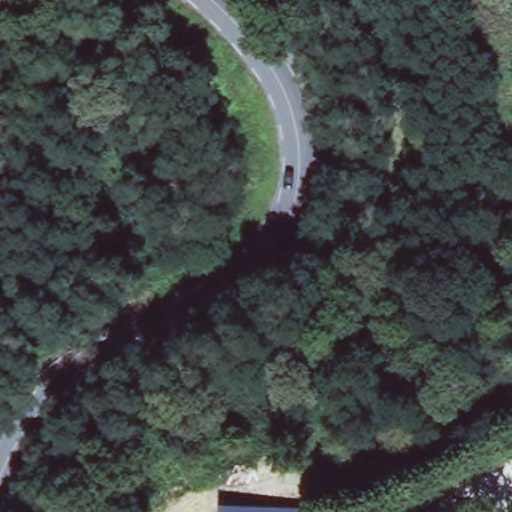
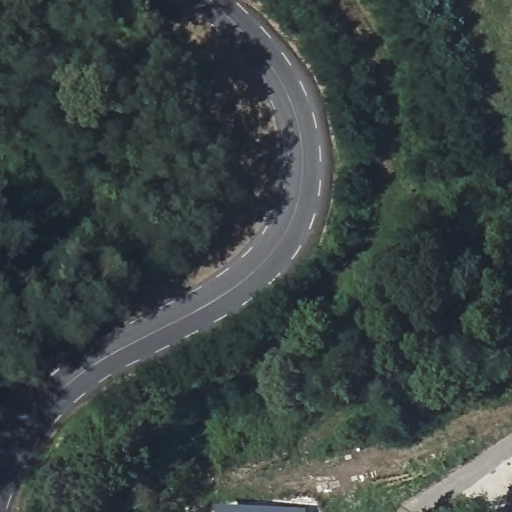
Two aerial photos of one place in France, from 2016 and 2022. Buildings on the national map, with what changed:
unchanged [(512,497),(512,499),(511,497),(512,497)]

